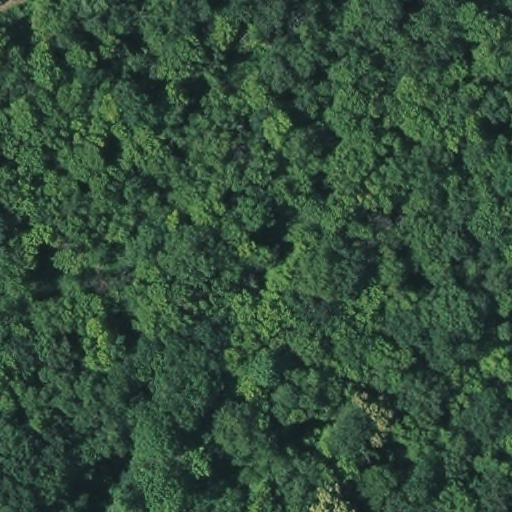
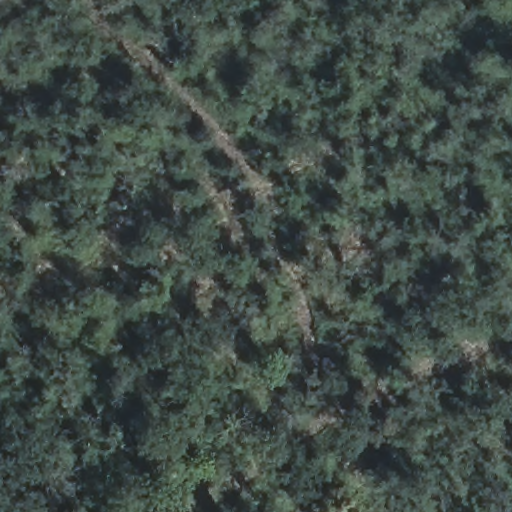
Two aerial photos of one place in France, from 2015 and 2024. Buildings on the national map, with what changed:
[]

